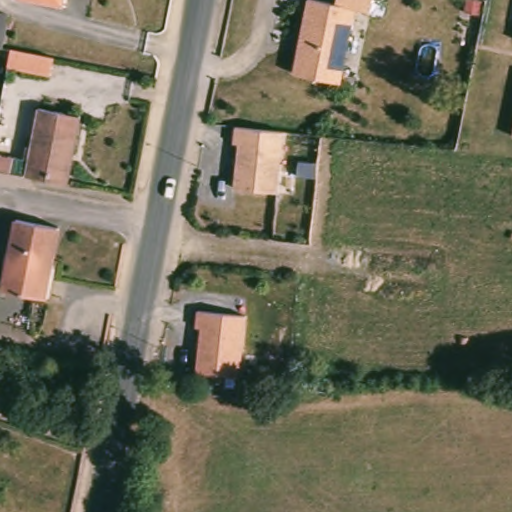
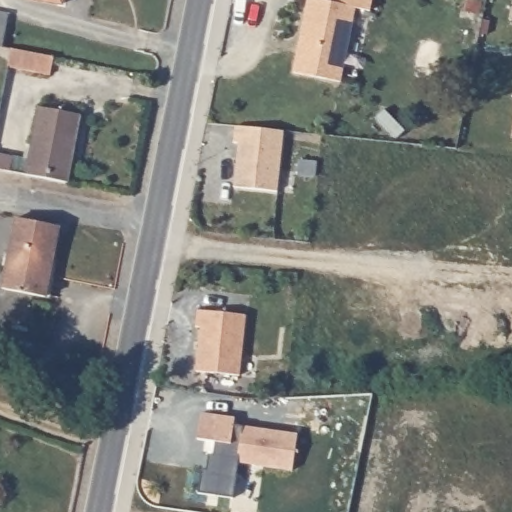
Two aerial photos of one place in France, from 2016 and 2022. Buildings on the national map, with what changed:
unchanged [(30,0),(63,0),(62,5),(58,5),(30,0)]
unchanged [(355,10),(342,73),(295,64),(308,0),(316,0),(336,4),(337,0),(372,0),(370,12),(355,10)]
unchanged [(0,37),(0,14),(4,15),(0,37)]
unchanged [(45,76),(2,67),(5,49),(48,57),(45,76)]
unchanged [(28,160),(38,107),(80,116),(69,174),(67,184),(0,170),(0,154),(14,157),(28,160)]
unchanged [(239,144),(233,142),(235,127),(284,132),(277,192),(234,187),(239,144)]
unchanged [(51,264),(45,298),(2,290),(15,219),(59,227),(51,264)]
unchanged [(245,315),(239,376),(196,371),(200,327),(195,327),(197,310),(245,315)]
new [(293,472),(236,463),(232,497),(199,493),(202,471),(207,472),(209,456),(214,457),(216,443),(198,440),(202,413),(234,418),(233,426),(297,435),(293,472)]

